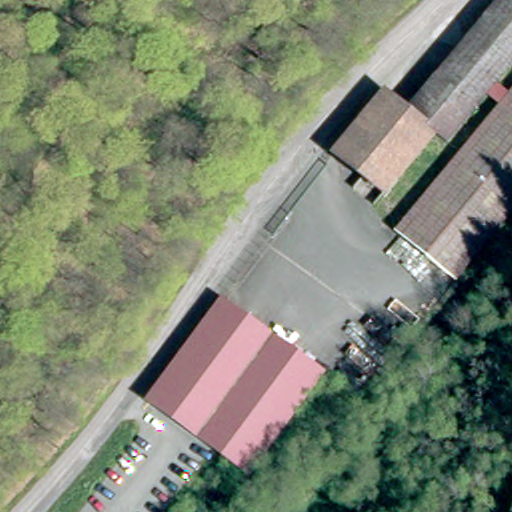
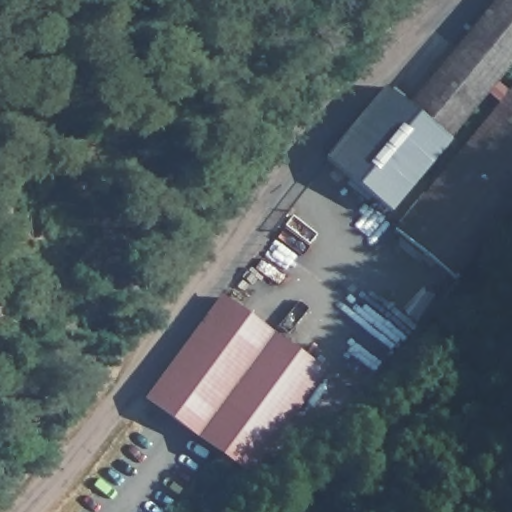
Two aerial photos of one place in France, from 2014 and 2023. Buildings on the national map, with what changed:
unchanged [(410,106),(497,0),(512,0),(512,64),(450,140),(436,129),(386,190),(336,149),(387,86),(410,106)]
unchanged [(445,265),(401,227),(512,92),(512,216),(480,255),(458,275),(456,277),(445,265)]
unchanged [(319,367),(247,470),(226,455),(144,396),(217,295),(319,367)]

